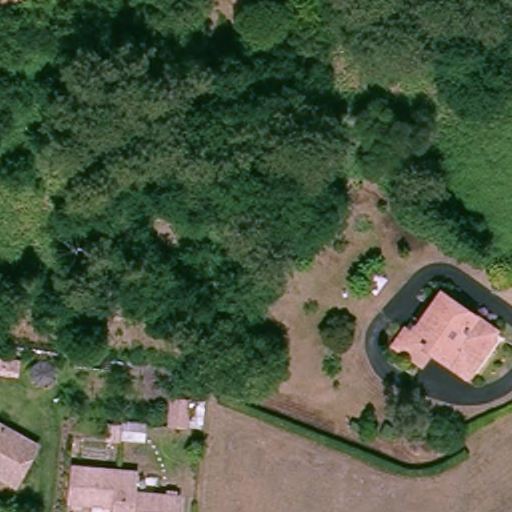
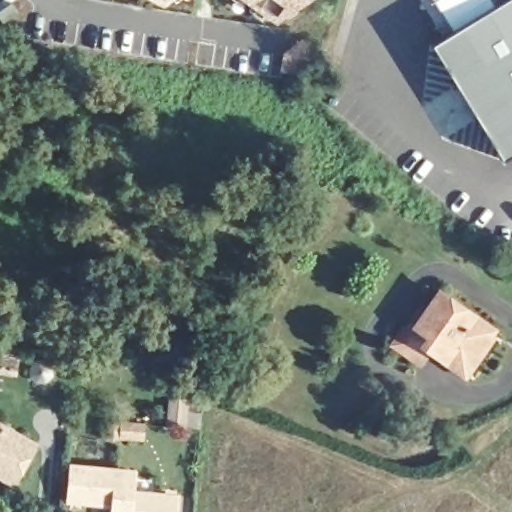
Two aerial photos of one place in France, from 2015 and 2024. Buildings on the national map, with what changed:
new [(161,1),(159,0),(164,0),(161,1)]
new [(301,0),(277,17),(251,0),(301,0)]
new [(471,122),(451,91),(458,85),(431,42),(501,0),(512,0),(512,152),(502,157),(479,120),(471,122)]
new [(452,30),(435,0),(492,0),(494,4),(452,30)]
unchanged [(469,383),(428,353),(417,370),(390,350),(402,331),(412,338),(441,295),(487,331),(485,337),(495,345),(471,376),(469,383)]
unchanged [(171,445),(154,444),(157,415),(173,416),(171,445)]
unchanged [(20,431),(1,470),(0,469),(0,421),(20,431)]
unchanged [(75,467),(136,473),(135,491),(182,498),(181,512),(118,512),(118,508),(72,503),(75,467)]

